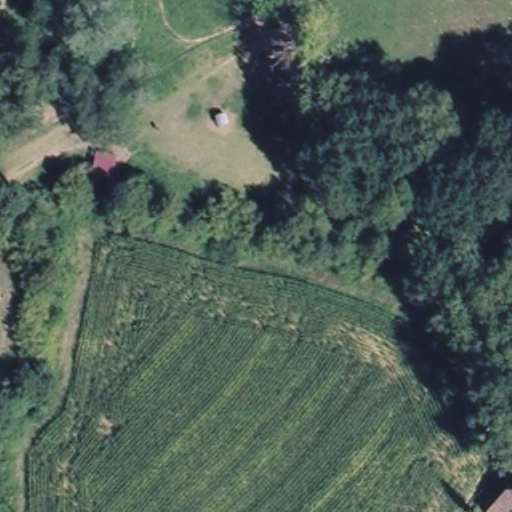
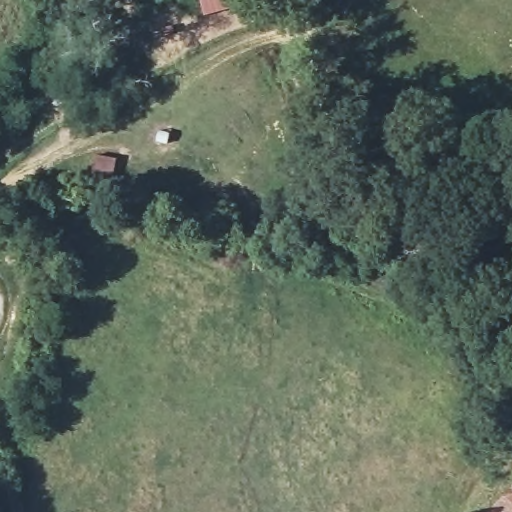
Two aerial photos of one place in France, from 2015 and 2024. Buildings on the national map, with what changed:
unchanged [(512,512),(490,512),(512,489),(512,512)]

